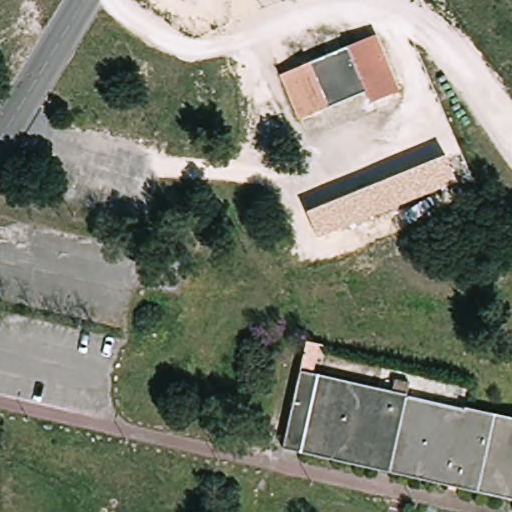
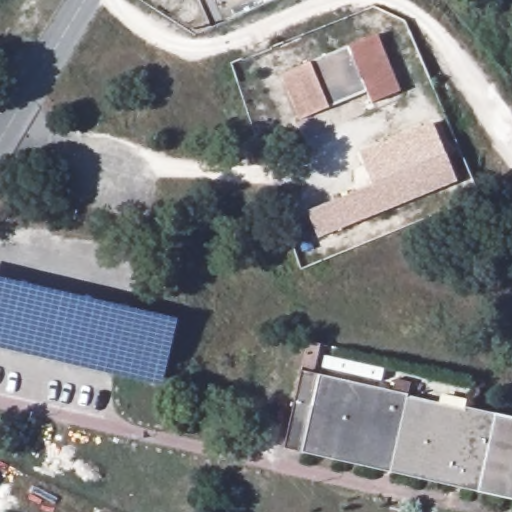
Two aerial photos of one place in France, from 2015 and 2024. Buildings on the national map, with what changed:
unchanged [(383,30),(407,87),(378,100),(373,89),(307,119),(287,74),(383,30)]
new [(445,156),(372,186),(359,153),(433,123),(445,156)]
unchanged [(318,238),(308,212),(445,156),(455,182),(318,238)]
new [(0,279),(179,320),(162,388),(0,350),(0,279)]
unchanged [(307,360),(319,363),(317,373),(393,390),(395,378),(412,381),(409,393),(468,405),(512,416),(512,497),(422,478),(407,475),(288,450),(307,360)]

